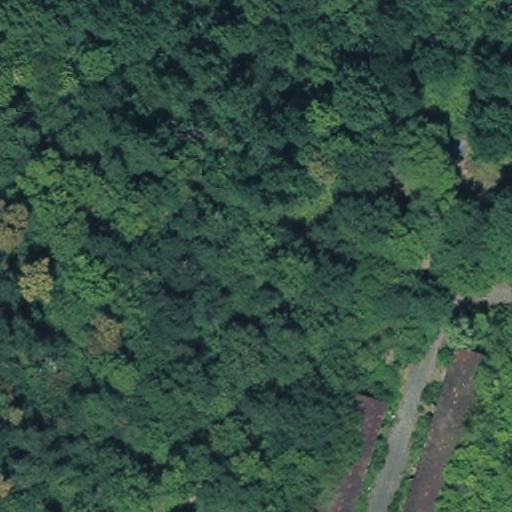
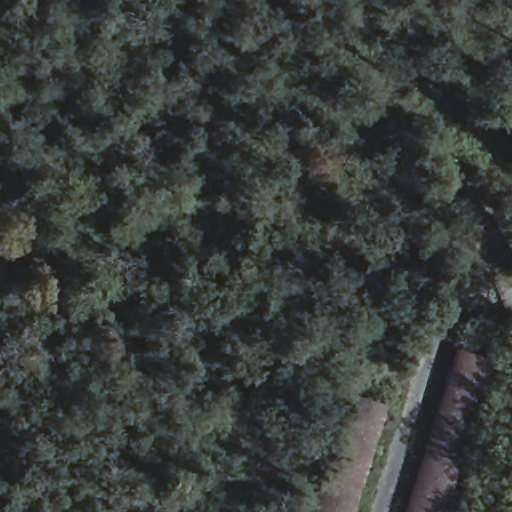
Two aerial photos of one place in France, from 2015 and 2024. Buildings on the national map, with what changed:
unchanged [(442,512),(407,512),(454,346),(487,356),(442,512)]
unchanged [(355,512),(319,512),(348,394),(383,403),(355,512)]

